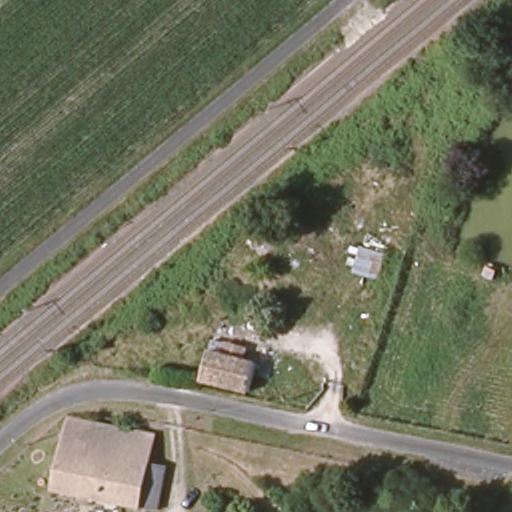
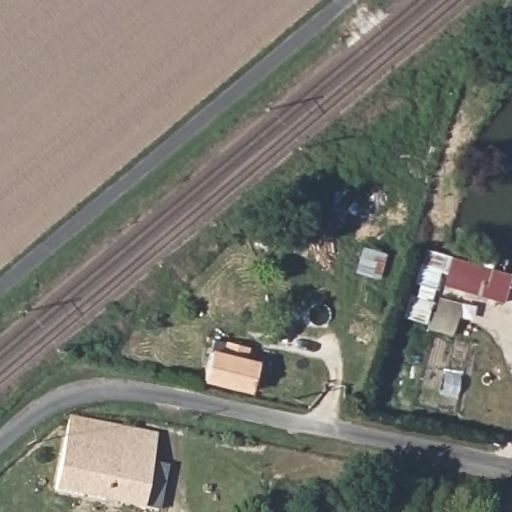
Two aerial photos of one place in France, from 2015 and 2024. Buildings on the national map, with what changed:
new [(511,274),(503,303),(445,286),(453,258),(511,274)]
unchanged [(203,380),(209,351),(218,353),(220,340),(241,345),(238,357),(254,361),(247,389),(203,380)]
unchanged [(157,512),(127,512),(119,509),(49,479),(80,414),(165,440),(153,469),(172,477),(162,499),(157,512)]

